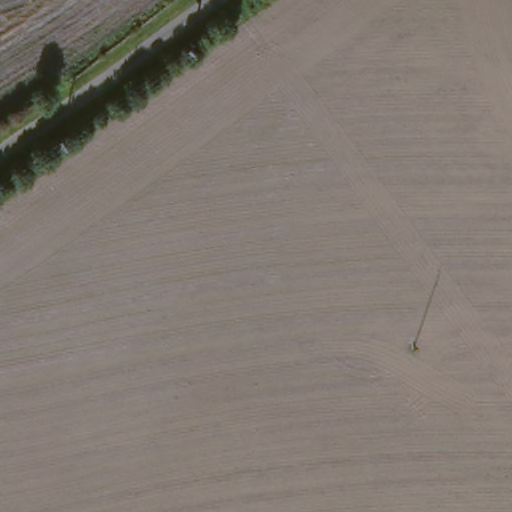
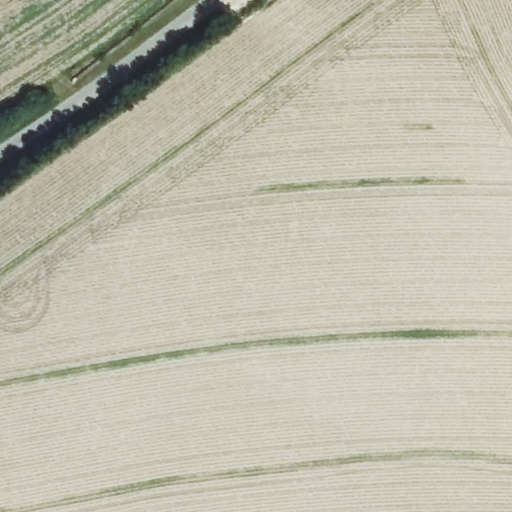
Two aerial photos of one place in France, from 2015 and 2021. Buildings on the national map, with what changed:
unchanged [(4,181),(0,184),(0,174),(4,181)]

